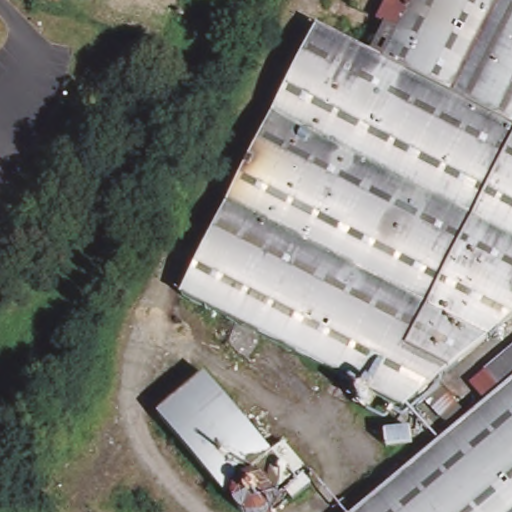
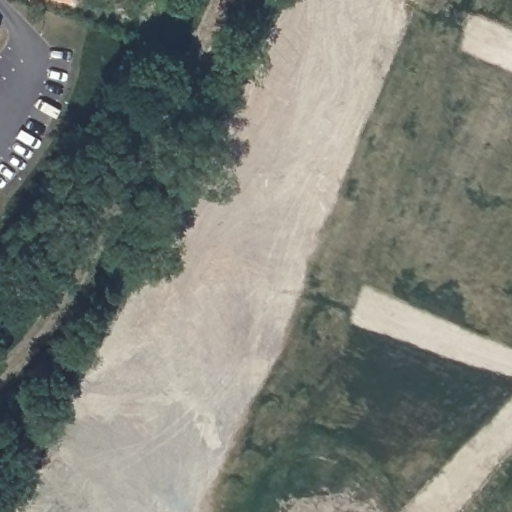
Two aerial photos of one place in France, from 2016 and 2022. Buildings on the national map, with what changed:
demolished [(182,301),(313,41),(366,67),(380,39),(373,35),(391,0),(399,0),(414,7),(418,0),(512,0),(512,329),(410,416),(182,301)]
unchanged [(0,36),(0,29),(3,32),(0,36)]
demolished [(322,512),(512,351),(512,512),(322,512)]
demolished [(210,382),(275,458),(233,494),(168,416),(210,382)]

